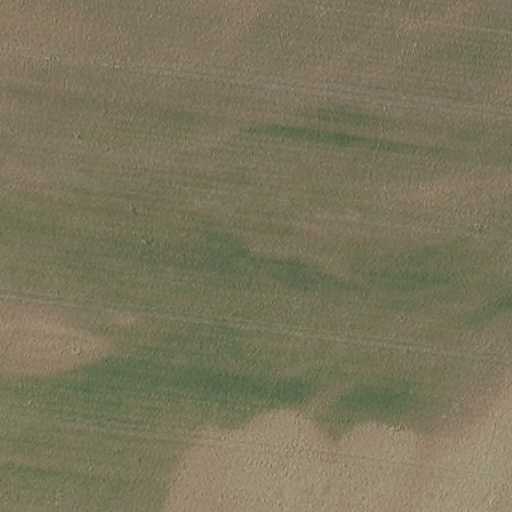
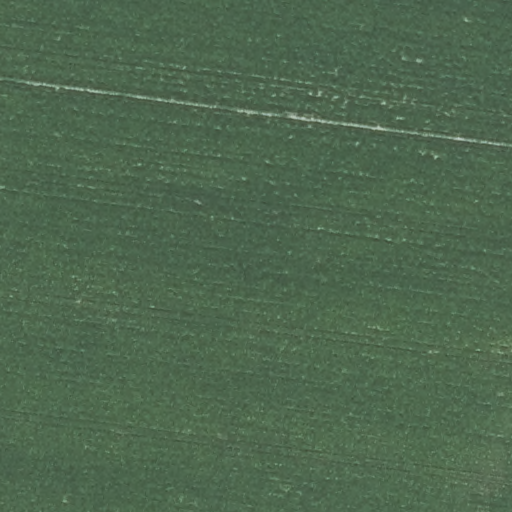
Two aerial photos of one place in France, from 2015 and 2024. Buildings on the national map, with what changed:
[]

